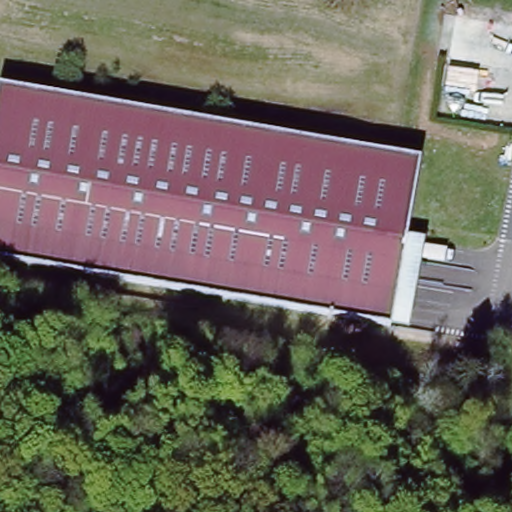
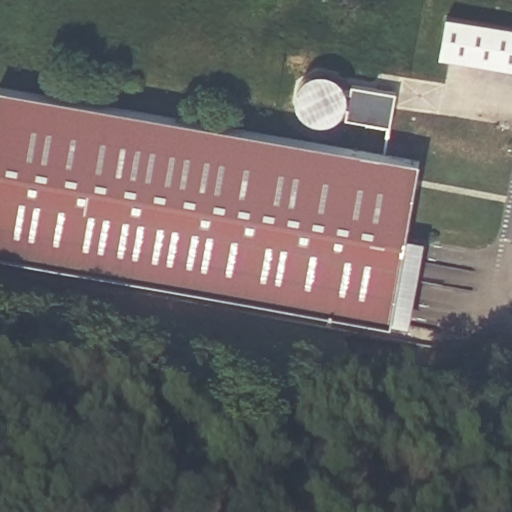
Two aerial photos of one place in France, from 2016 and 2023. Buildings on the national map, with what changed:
new [(512,26),(512,69),(455,59),(442,57),(448,15),(512,26)]
new [(345,121),(345,119),(342,118),(333,124),(328,125),(318,125),(314,123),(307,118),(302,111),(300,107),(300,98),(302,88),(308,79),(313,76),(319,75),(325,74),(330,75),(338,77),(342,81),(346,85),(348,90),(352,90),(352,88),(396,96),(390,130),(345,121)]
unchanged [(410,225),(395,315),(0,259),(0,87),(421,148),(410,225)]
unchanged [(428,228),(413,319),(395,315),(410,225),(428,228)]

